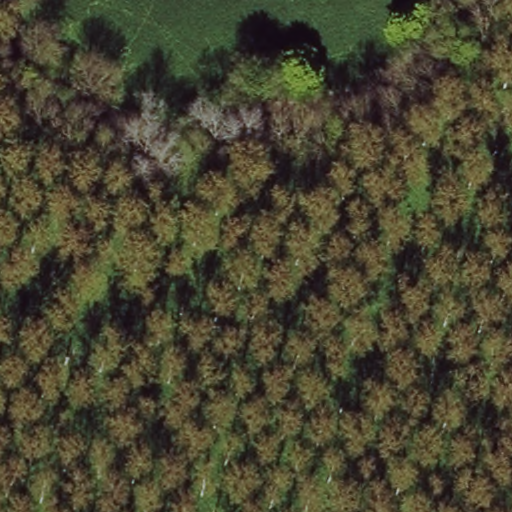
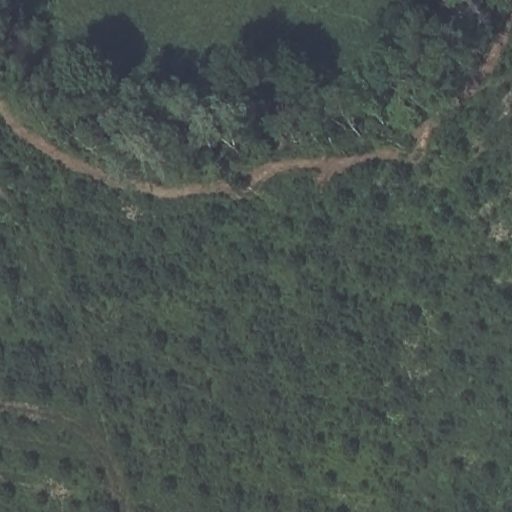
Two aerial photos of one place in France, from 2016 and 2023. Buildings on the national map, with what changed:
[]

